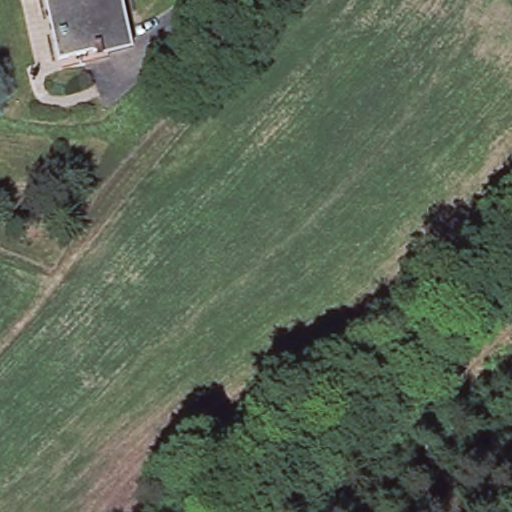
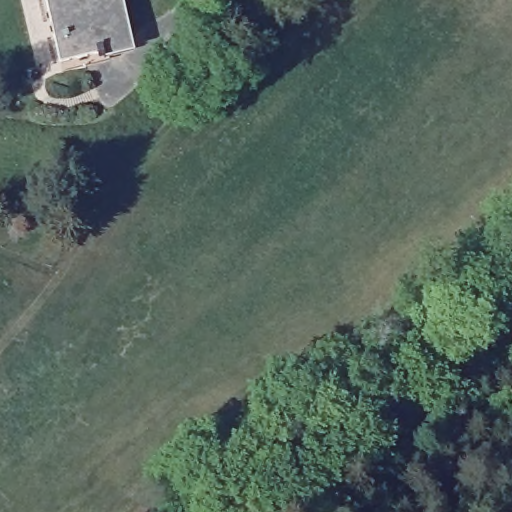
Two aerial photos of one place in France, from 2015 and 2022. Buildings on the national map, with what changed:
unchanged [(109,54),(110,61),(105,62),(104,55),(90,57),(92,66),(67,71),(54,0),(120,0),(130,49),(109,54)]

